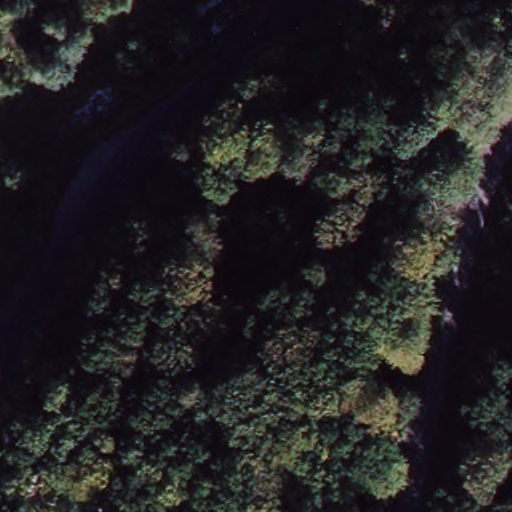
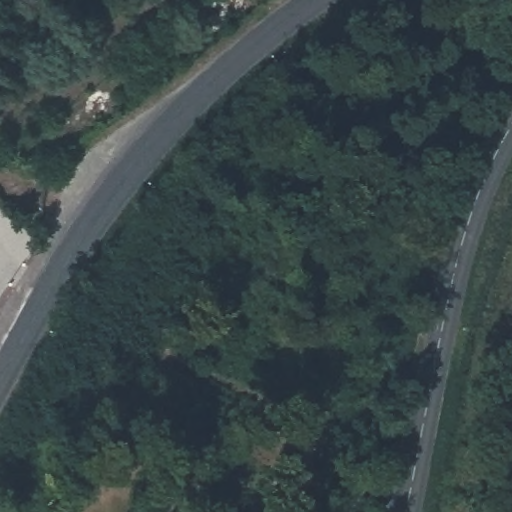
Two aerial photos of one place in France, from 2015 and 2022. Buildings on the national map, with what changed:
[]

